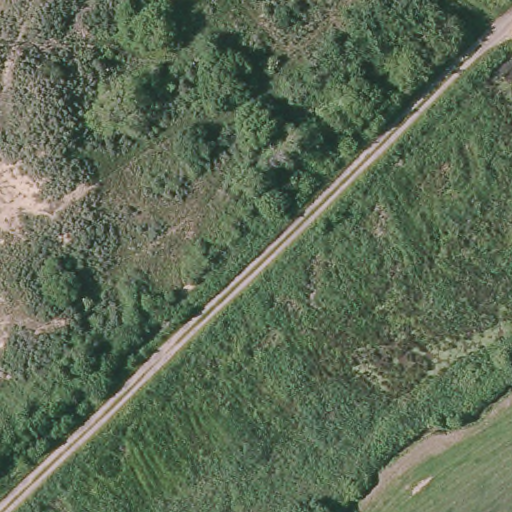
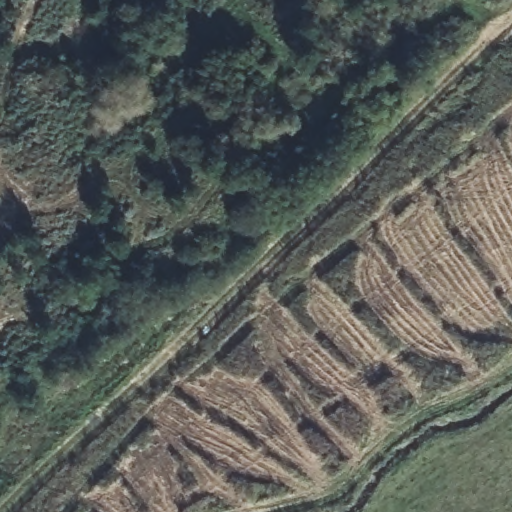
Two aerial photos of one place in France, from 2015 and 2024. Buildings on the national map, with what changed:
[]

